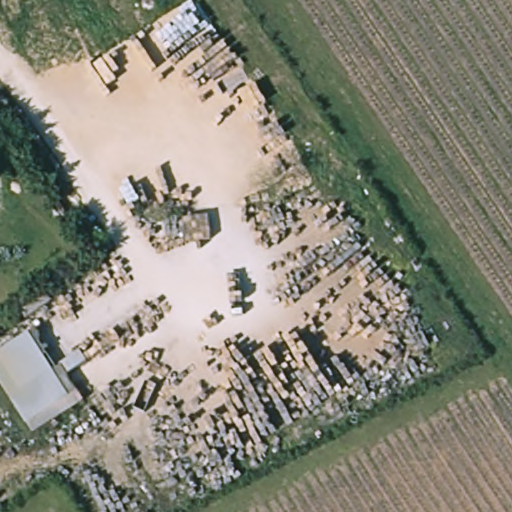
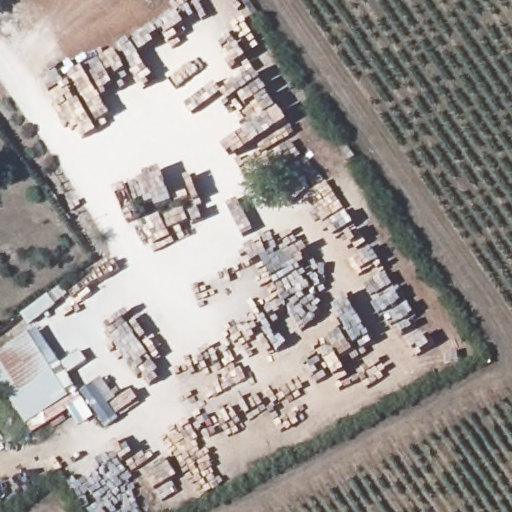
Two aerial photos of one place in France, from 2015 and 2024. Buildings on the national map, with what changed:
unchanged [(83,401),(35,431),(0,374),(0,359),(37,334),(83,401)]

